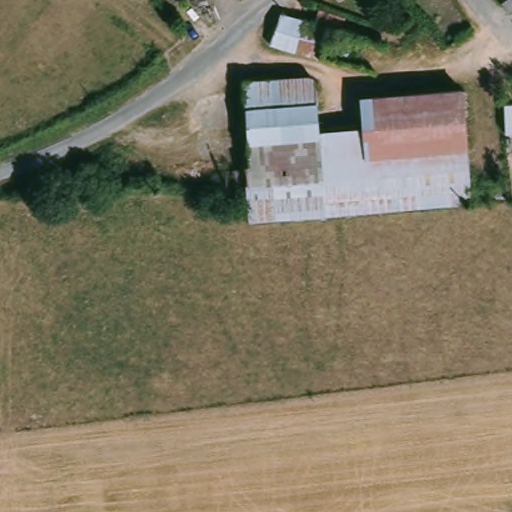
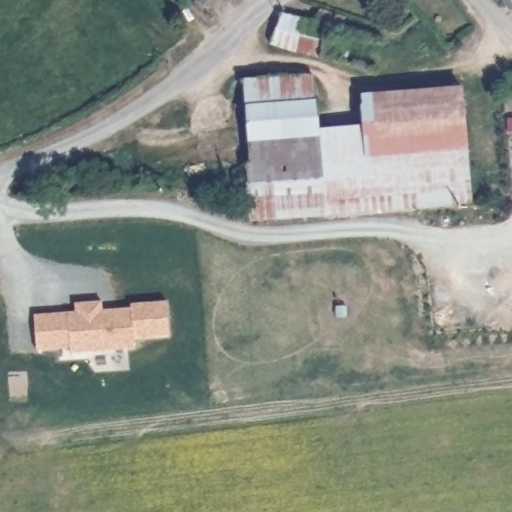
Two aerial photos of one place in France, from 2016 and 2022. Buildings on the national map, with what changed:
unchanged [(499,0),(512,0),(512,17),(499,0)]
unchanged [(340,34),(324,28),(315,59),(269,47),(279,15),(313,22),(315,10),(344,17),(340,34)]
unchanged [(239,82),(311,76),(316,136),(318,165),(245,169),(239,82)]
unchanged [(244,215),(240,170),(245,169),(318,165),(316,136),(359,131),(357,98),(455,89),(466,201),(346,211),(313,215),(244,223),(244,215)]
new [(133,338),(134,348),(69,352),(69,346),(36,349),(34,315),(75,311),(74,304),(101,301),(103,311),(130,308),(130,305),(166,301),(168,335),(133,338)]

